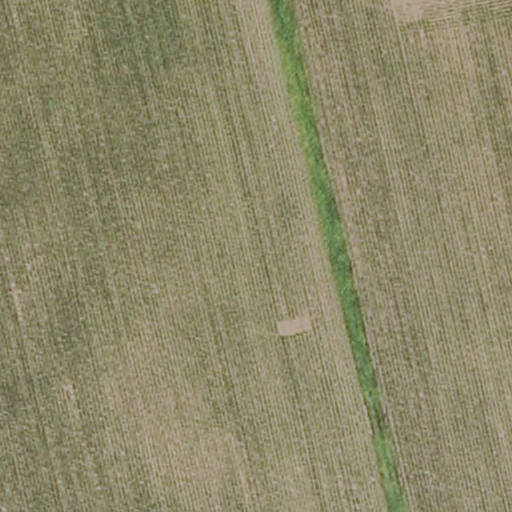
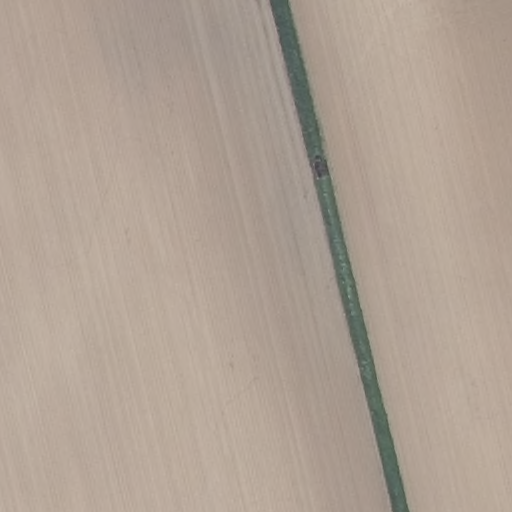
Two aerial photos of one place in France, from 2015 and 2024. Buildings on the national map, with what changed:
[]

